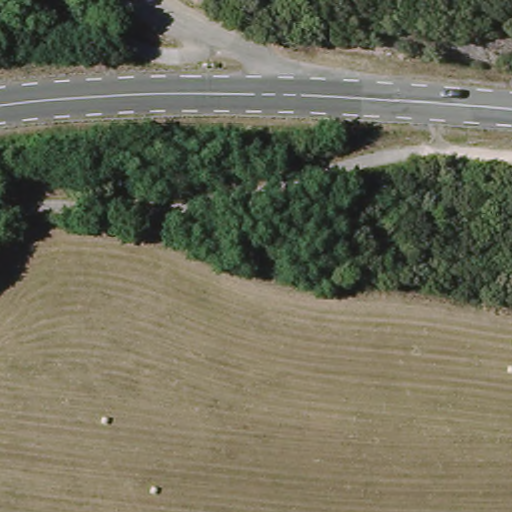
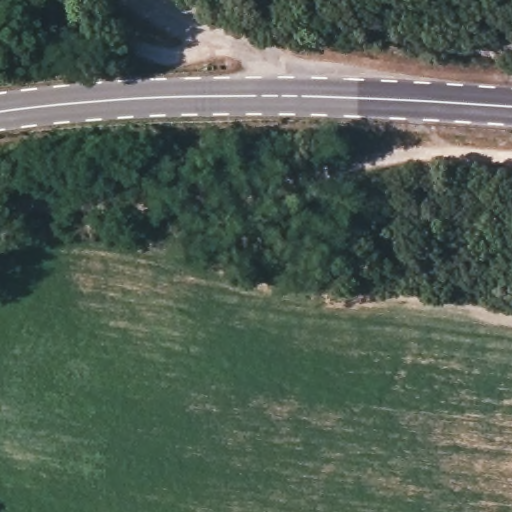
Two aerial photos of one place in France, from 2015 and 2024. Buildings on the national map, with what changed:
unchanged [(265,260),(250,260),(249,244),(265,245),(265,260)]

